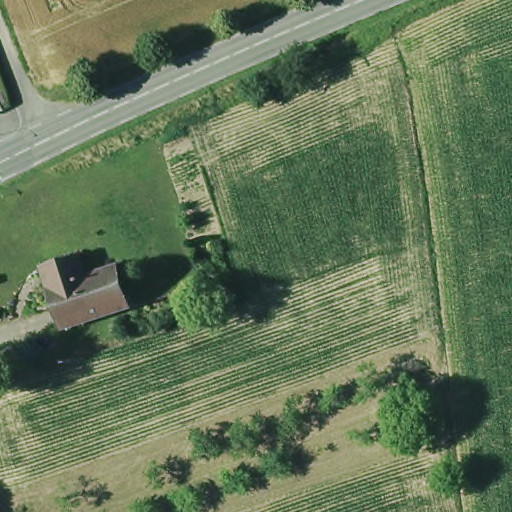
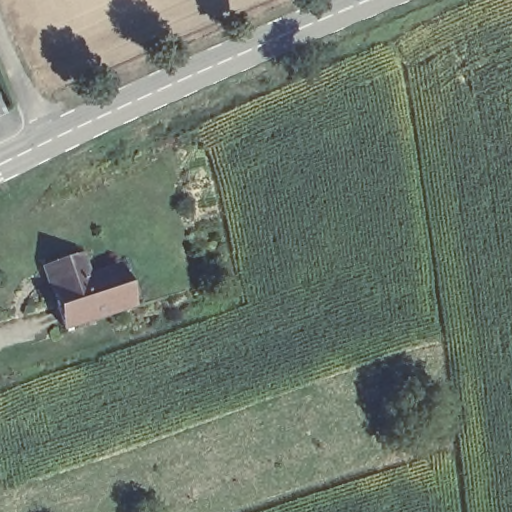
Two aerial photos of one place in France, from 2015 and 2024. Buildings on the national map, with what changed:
unchanged [(0,107),(0,100),(3,106),(0,107)]
unchanged [(78,254),(90,277),(121,265),(135,308),(57,324),(40,267),(78,254)]

